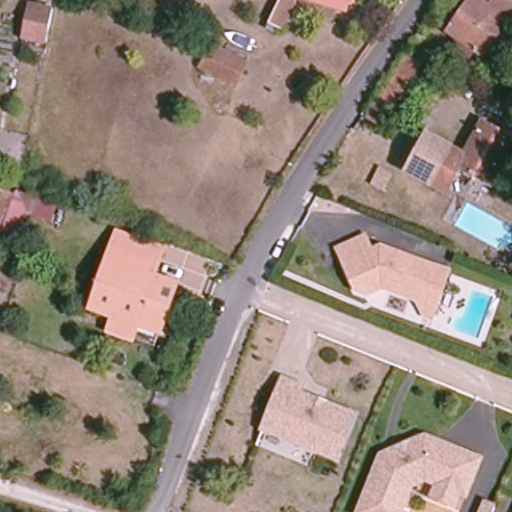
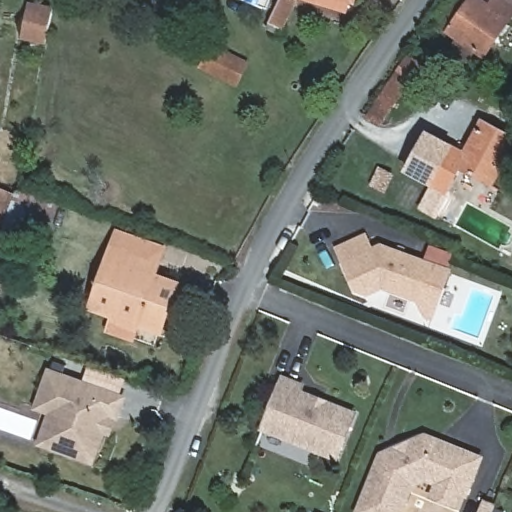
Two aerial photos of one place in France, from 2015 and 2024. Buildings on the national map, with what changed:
unchanged [(2,13),(0,13),(0,0),(1,0),(2,13)]
unchanged [(302,2),(289,31),(282,28),(280,32),(275,30),(290,0),(297,0),(302,2)]
unchanged [(360,4),(357,3),(354,13),(312,0),(362,0),(360,4)]
unchanged [(440,27),(450,15),(460,22),(476,0),(477,0),(490,10),(497,0),(512,0),(512,23),(485,60),(476,54),(468,64),(454,54),(462,43),(440,27)]
unchanged [(21,41),(28,8),(52,13),(45,46),(21,41)]
unchanged [(249,61),(238,83),(203,65),(213,44),(249,61)]
unchanged [(370,115),(411,56),(421,62),(381,123),(370,115)]
unchanged [(461,157),(478,125),(512,142),(512,143),(488,188),(454,171),(446,187),(441,197),(424,188),(445,149),(461,157)]
unchanged [(424,188),(395,170),(418,133),(445,149),(424,188)]
unchanged [(381,167),(393,174),(386,187),(374,181),(381,167)]
unchanged [(59,209),(53,224),(25,217),(17,239),(0,232),(0,186),(59,209)]
unchanged [(102,290),(120,236),(167,252),(156,283),(121,271),(113,294),(102,290)]
unchanged [(369,293),(359,289),(340,249),(367,237),(373,251),(383,247),(450,271),(434,316),(427,313),(420,298),(391,288),(384,286),(369,293)]
unchanged [(156,283),(167,287),(178,292),(170,314),(162,337),(93,313),(102,290),(113,294),(121,271),(156,283)]
new [(93,465),(36,445),(47,415),(32,410),(48,368),(125,397),(117,420),(114,419),(109,436),(104,434),(93,465)]
unchanged [(338,458),(265,428),(285,377),(304,385),(301,392),(317,398),(325,401),(356,413),(338,458)]
unchanged [(421,478),(407,484),(396,512),(354,512),(373,465),(378,454),(392,448),(408,442),(422,436),(433,440),(476,458),(461,495),(455,492),(450,506),(428,496),(433,483),(421,478)]
unchanged [(483,512),(487,502),(497,506),(494,512),(483,512)]

